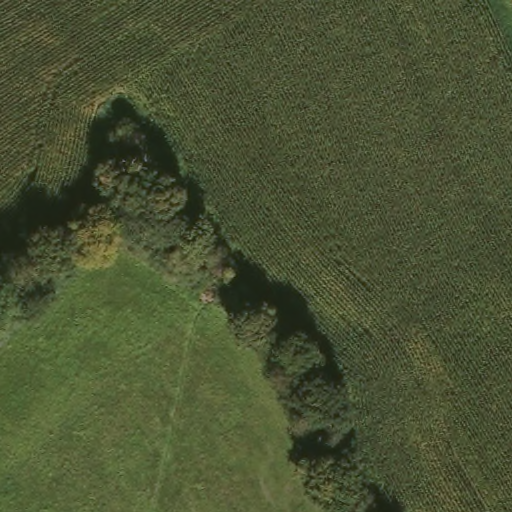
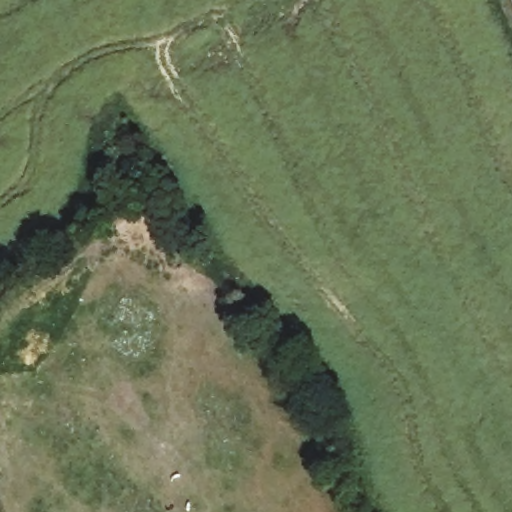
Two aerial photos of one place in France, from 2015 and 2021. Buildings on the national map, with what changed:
[]

